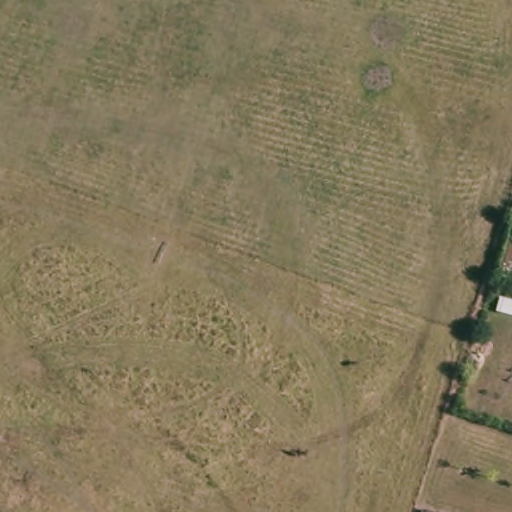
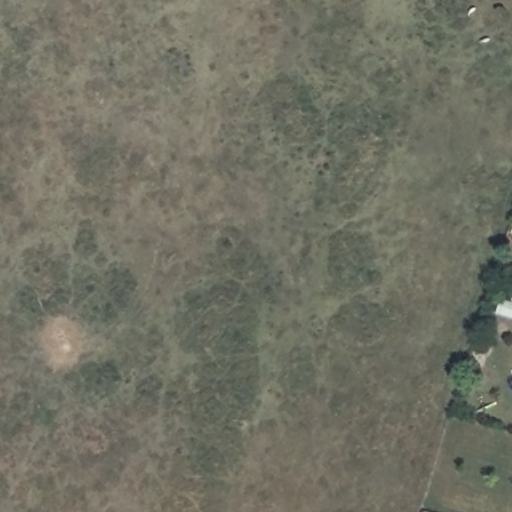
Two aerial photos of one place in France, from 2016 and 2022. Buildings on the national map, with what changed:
[]

